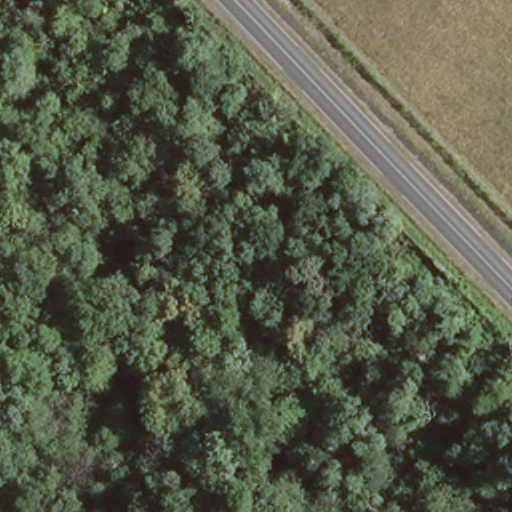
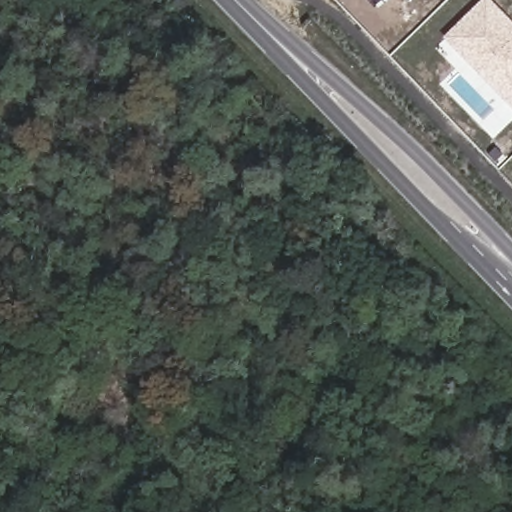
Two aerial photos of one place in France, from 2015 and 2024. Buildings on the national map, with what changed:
new [(443,39),(483,0),(489,0),(512,23),(512,109),(443,39)]

